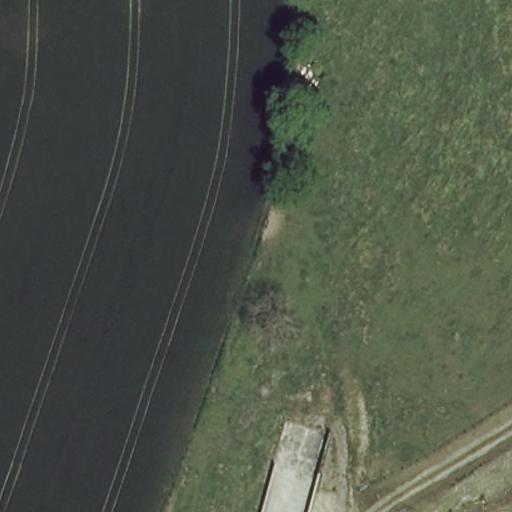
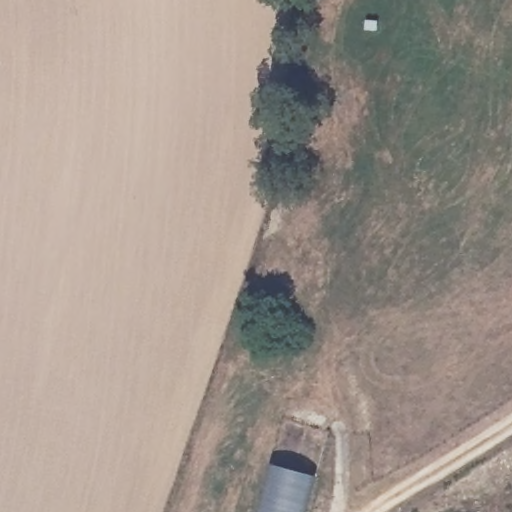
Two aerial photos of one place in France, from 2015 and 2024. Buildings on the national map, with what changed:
new [(271,465),(316,477),(306,512),(258,512),(271,465)]

